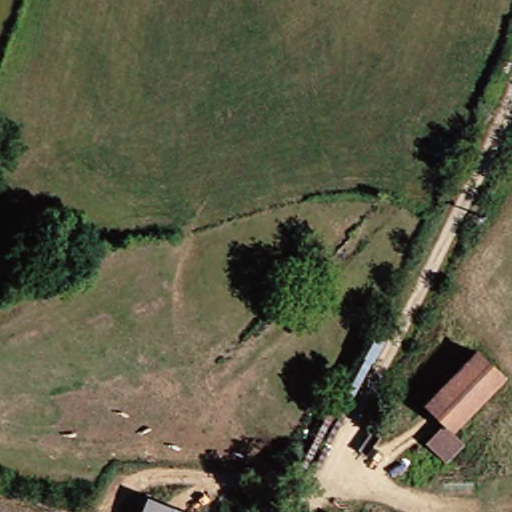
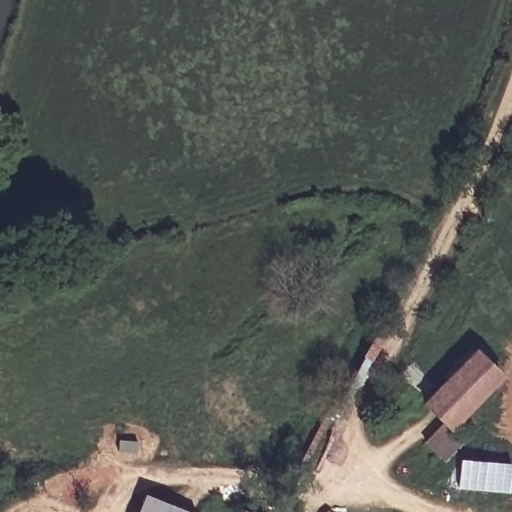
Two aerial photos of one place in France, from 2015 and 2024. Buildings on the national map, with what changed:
unchanged [(480,351),(510,378),(456,432),(466,443),(450,461),(430,440),(447,425),(425,405),(480,351)]
new [(512,466),(510,494),(458,489),(461,461),(512,466)]
unchanged [(148,494),(177,505),(195,512),(141,512),(148,494)]
unchanged [(331,512),(325,512),(327,509),(331,512)]

